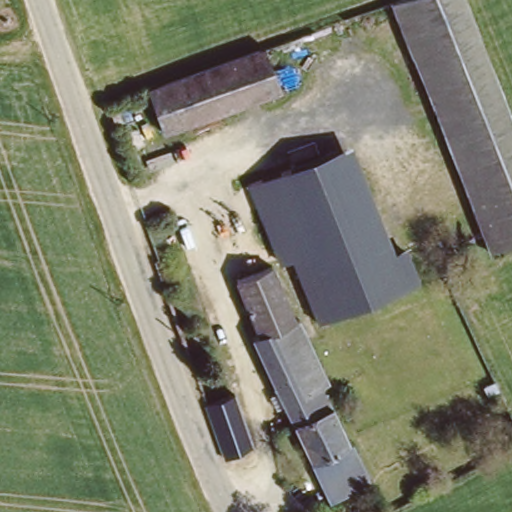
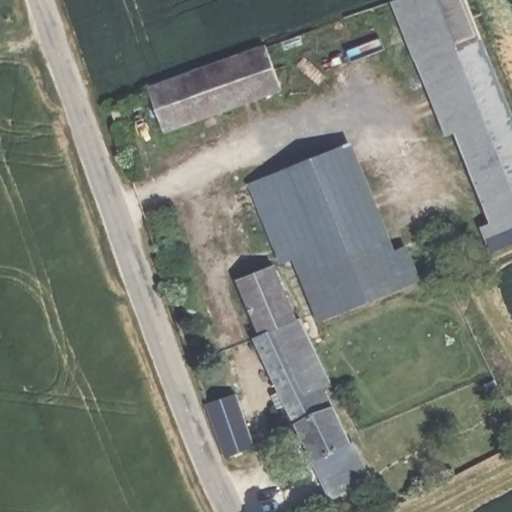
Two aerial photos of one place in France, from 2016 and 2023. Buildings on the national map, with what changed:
unchanged [(508,111),(447,138),(393,0),(465,0),(508,111)]
unchanged [(264,44),(280,88),(164,132),(146,87),(264,44)]
unchanged [(508,111),(512,122),(512,243),(491,251),(447,138),(508,111)]
unchanged [(347,144),(390,262),(405,257),(414,281),(328,312),(278,171),(347,144)]
unchanged [(278,171),(328,312),(318,316),(292,256),(275,262),(265,238),(247,184),(278,171)]
unchanged [(275,262),(292,256),(318,316),(330,349),(309,357),(316,375),(309,378),(314,390),(320,388),(348,463),(306,478),(255,335),(260,333),(240,285),(275,262)]
unchanged [(234,395),(245,425),(217,436),(207,406),(234,395)]

